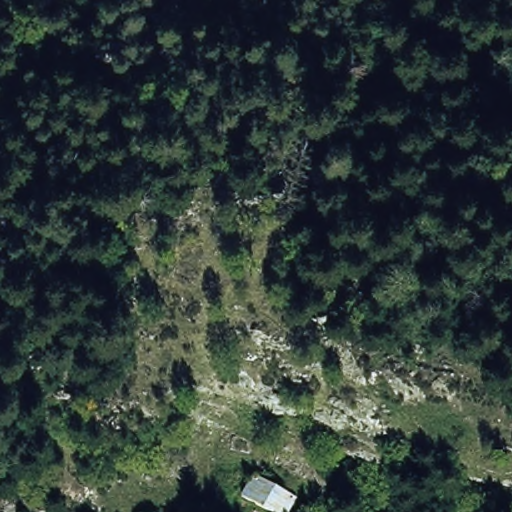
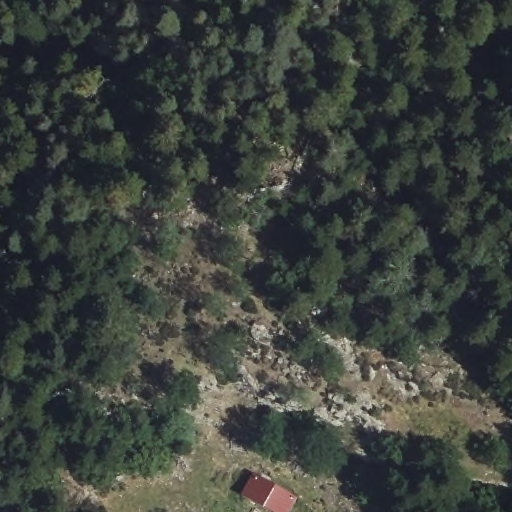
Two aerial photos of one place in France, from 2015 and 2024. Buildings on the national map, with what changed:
unchanged [(300,496),(290,512),(257,512),(235,500),(252,472),(300,496)]

